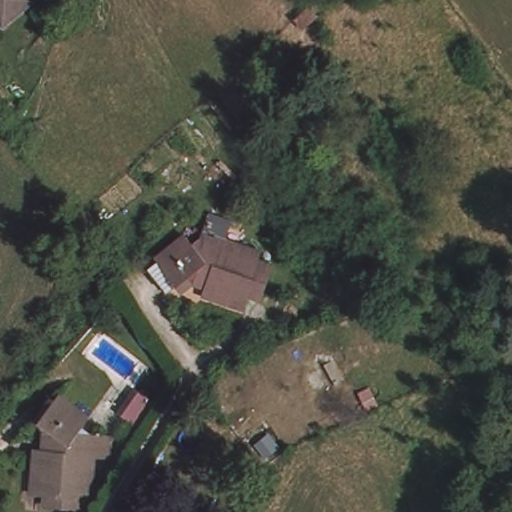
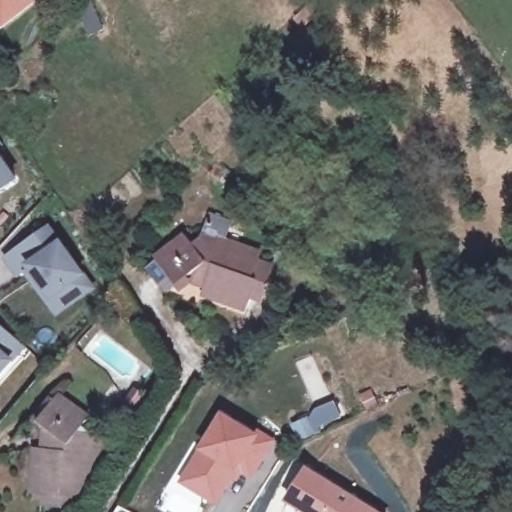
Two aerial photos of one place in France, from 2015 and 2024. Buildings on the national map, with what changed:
unchanged [(0,20),(0,0),(24,0),(0,20)]
new [(0,192),(0,152),(18,179),(0,192)]
unchanged [(248,291),(245,300),(231,295),(228,301),(199,291),(204,275),(197,271),(190,276),(186,272),(165,292),(143,267),(154,257),(166,246),(184,231),(192,240),(201,232),(208,210),(226,217),(221,232),(254,245),(253,255),(268,260),(260,285),(256,294),(248,291)]
new [(49,225),(60,240),(85,275),(95,288),(55,318),(25,274),(16,279),(3,258),(49,225)]
new [(14,360),(0,375),(0,324),(25,347),(14,360)]
unchanged [(38,493),(30,493),(31,480),(24,478),(28,450),(43,450),(47,441),(40,437),(43,430),(33,422),(46,403),(51,397),(68,407),(82,418),(76,426),(89,434),(104,436),(100,456),(88,455),(83,492),(74,492),(73,507),(48,505),(38,504),(38,493)]
new [(333,397),(343,416),(299,442),(289,423),(333,397)]
new [(198,450),(223,411),(254,431),(257,427),(277,440),(252,480),(244,475),(239,483),(234,480),(218,506),(181,482),(198,450)]
new [(382,512),(308,512),(302,507),(304,505),(296,499),(301,491),(294,486),(306,463),(382,512)]

